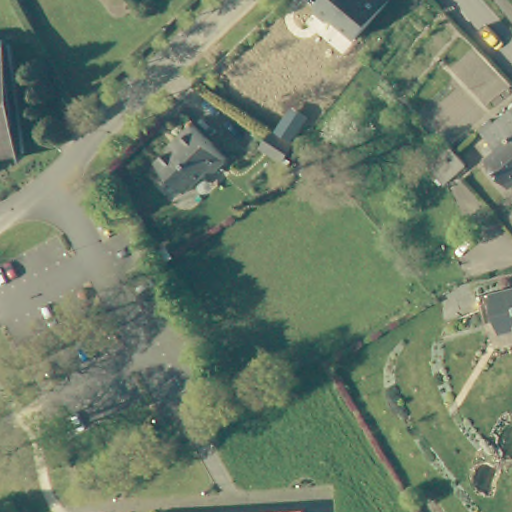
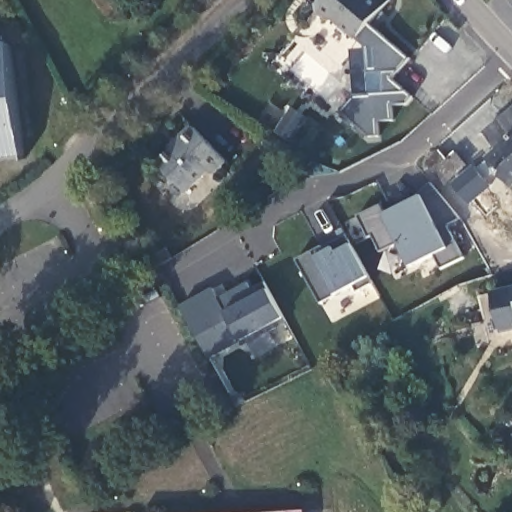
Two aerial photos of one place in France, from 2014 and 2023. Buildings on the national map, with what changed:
unchanged [(335,23),(328,24),(316,15),(316,7),(320,0),(385,0),(356,40),(335,23)]
new [(392,78),(414,97),(407,103),(391,104),(393,121),(377,122),(378,137),(370,137),(342,112),(356,97),(351,49),(365,46),(356,40),(368,22),(409,58),(392,78)]
unchanged [(22,154),(0,157),(0,44),(7,44),(22,154)]
unchanged [(492,122),(495,127),(512,114),(512,185),(490,157),(491,156),(487,150),(492,145),(482,131),(492,122)]
unchanged [(157,163),(179,142),(177,139),(192,127),(224,161),(210,174),(204,174),(184,192),(157,163)]
unchanged [(432,155),(438,150),(447,142),(455,152),(465,165),(456,172),(449,177),(432,155)]
new [(449,224),(465,256),(442,267),(435,254),(411,265),(400,242),(380,251),(372,235),(368,237),(357,214),(381,203),(387,217),(399,211),(397,207),(407,202),(405,197),(432,183),(461,218),(449,224)]
unchanged [(97,190),(109,210),(99,216),(87,196),(97,190)]
new [(399,211),(387,217),(385,212),(397,207),(399,211)]
new [(373,281),(357,291),(353,284),(320,302),(296,258),(321,244),(322,247),(346,233),(373,281)]
new [(271,325),(272,328),(244,345),(242,340),(209,358),(182,307),(214,288),(222,307),(230,302),(227,295),(249,283),(252,288),(264,282),(282,317),(271,325)]
unchanged [(502,333),(498,331),(482,335),(473,295),(512,285),(512,331),(502,333)]
unchanged [(303,511),(304,512),(281,512),(303,511)]

